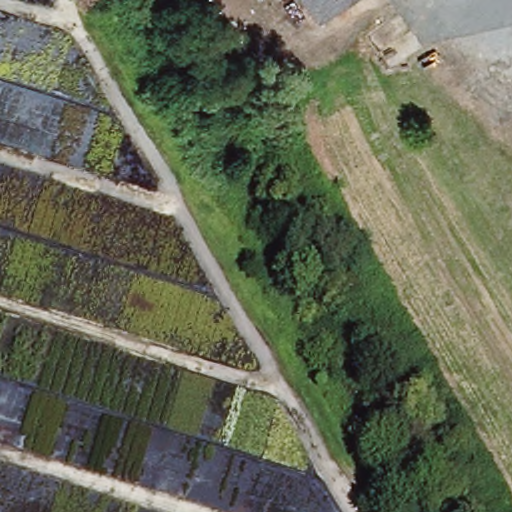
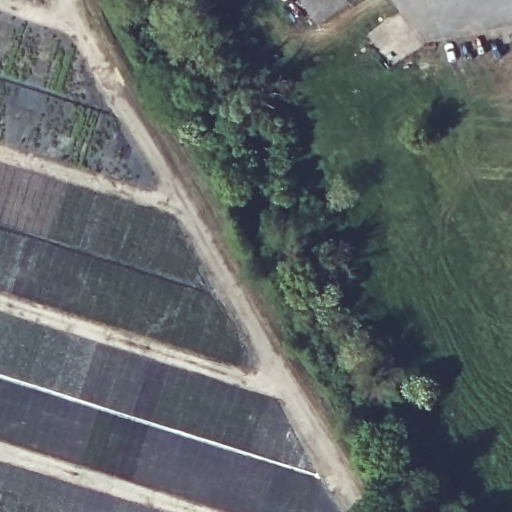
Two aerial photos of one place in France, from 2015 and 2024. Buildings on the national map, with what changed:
unchanged [(305,0),(347,0),(318,20),(305,0)]

